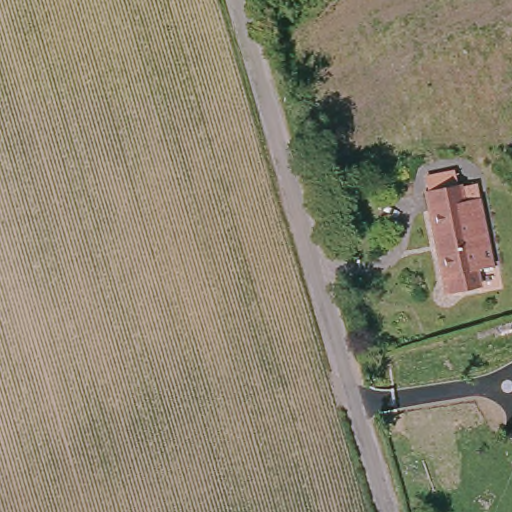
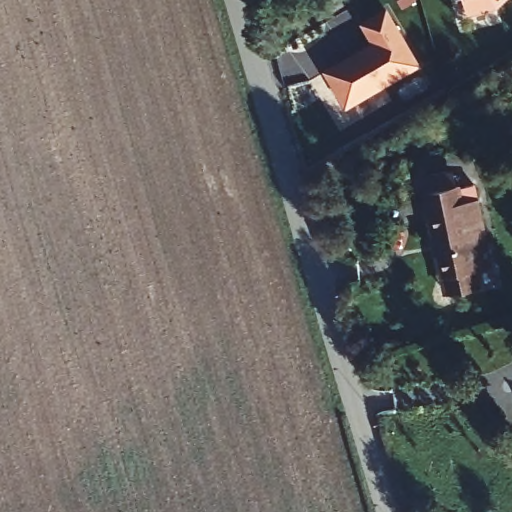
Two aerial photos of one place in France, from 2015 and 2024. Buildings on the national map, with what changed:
new [(496,8),(467,15),(463,0),(505,0),(496,8)]
new [(422,66),(345,110),(321,70),(370,42),(360,24),(387,6),(422,66)]
unchanged [(479,245),(461,250),(466,270),(434,280),(413,210),(422,207),(412,178),(430,172),(434,183),(442,181),(450,202),(462,199),(479,245)]

